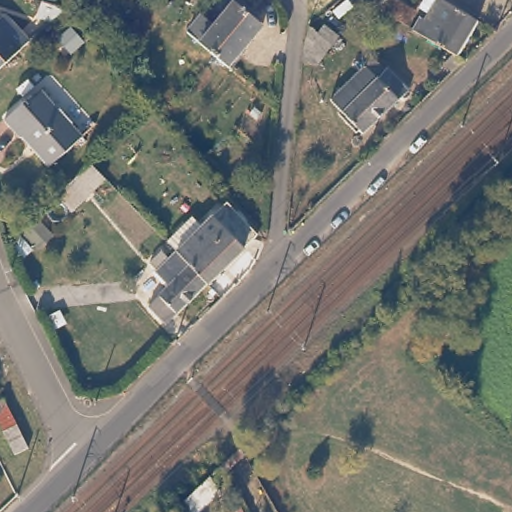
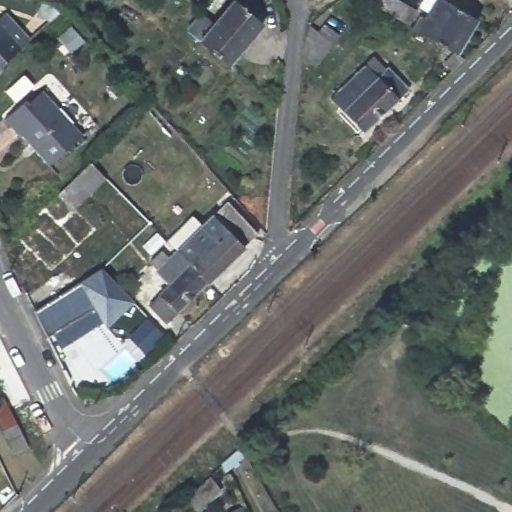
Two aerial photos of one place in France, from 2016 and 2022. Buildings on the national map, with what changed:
unchanged [(329,5),(324,0),(334,0),(329,5)]
unchanged [(415,16),(407,27),(375,10),(381,0),(390,0),(415,16)]
unchanged [(452,77),(443,67),(452,57),(411,33),(420,20),(425,22),(428,16),(420,11),(426,0),(436,0),(477,23),(457,59),(465,64),(452,77)]
unchanged [(266,22),(234,66),(192,31),(206,14),(217,22),(237,1),(266,22)]
unchanged [(26,47),(0,70),(0,19),(26,47)]
unchanged [(342,34),(314,70),(305,63),(305,56),(312,25),(321,32),(329,22),(342,34)]
unchanged [(407,112),(400,105),(367,138),(333,104),(377,62),(390,75),(392,72),(412,93),(408,97),(415,104),(407,112)]
unchanged [(87,133),(53,165),(27,135),(24,137),(10,119),(31,100),(34,103),(48,90),(87,133)]
unchanged [(75,210),(60,194),(94,161),(110,177),(102,186),(75,210)]
unchanged [(181,250),(171,240),(196,217),(205,226),(230,202),(262,233),(212,281),(181,250)]
unchanged [(169,323),(152,305),(172,285),(161,272),(161,271),(155,265),(166,252),(172,258),(181,250),(212,281),(169,323)]
new [(100,267),(132,300),(106,327),(102,322),(60,347),(52,332),(47,336),(33,310),(100,267)]
unchanged [(30,447),(16,455),(3,431),(6,430),(0,418),(0,398),(5,397),(30,447)]
unchanged [(241,448),(246,457),(225,475),(220,466),(241,448)]
unchanged [(224,488),(197,512),(190,512),(183,498),(210,475),(224,488)]

